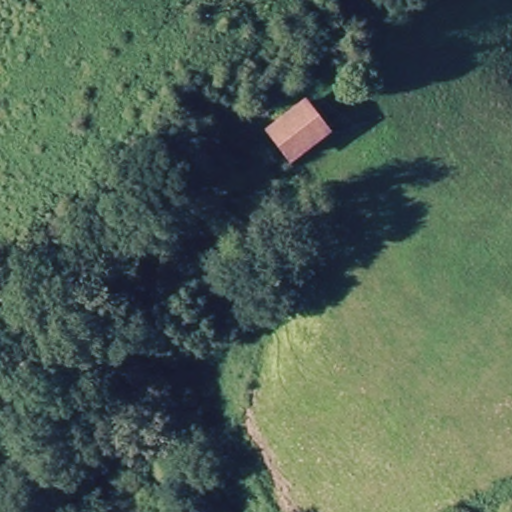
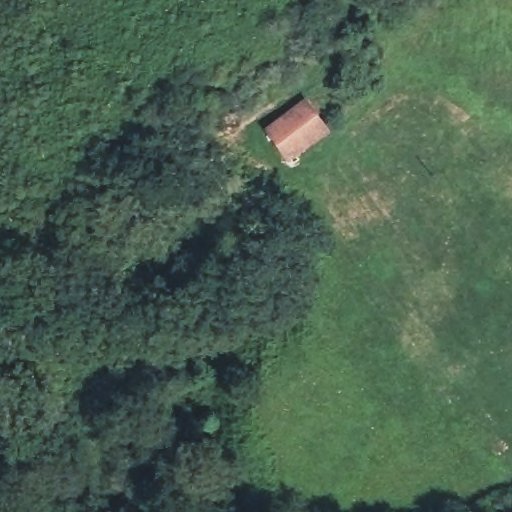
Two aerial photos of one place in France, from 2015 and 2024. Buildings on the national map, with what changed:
unchanged [(266,128),(302,100),(322,129),(288,159),(266,128)]

